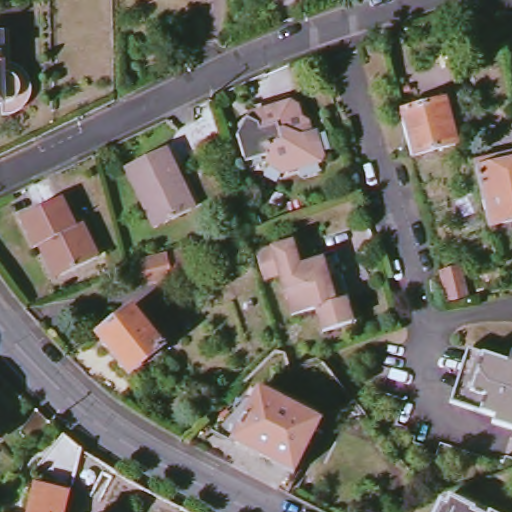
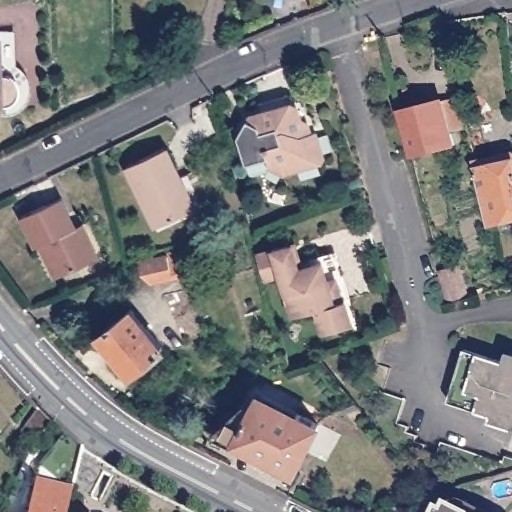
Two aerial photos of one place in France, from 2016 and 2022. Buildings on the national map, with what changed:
unchanged [(3,26),(5,61),(0,61),(0,26),(3,26)]
unchanged [(1,70),(3,70),(5,70),(7,71),(10,72),(12,74),(14,76),(15,78),(15,80),(16,82),(16,83),(16,86),(16,89),(15,91),(14,93),(12,95),(10,97),(8,98),(6,99),(5,100),(2,100),(0,100),(0,70),(1,70)]
unchanged [(269,162),(267,154),(245,160),(236,132),(246,115),(257,120),(260,115),(256,102),(285,93),(288,101),(297,107),(300,117),(306,119),(309,129),(314,127),(321,152),(318,158),(282,170),(269,162)]
unchanged [(399,115),(459,99),(466,130),(452,133),(455,146),(410,158),(399,115)]
unchanged [(125,167),(169,146),(184,176),(180,178),(195,207),(154,227),(125,167)]
unchanged [(512,153),(512,220),(489,225),(474,162),(512,153)]
unchanged [(48,264),(39,247),(35,249),(19,219),(58,200),(76,235),(82,232),(96,259),(63,277),(56,279),(48,264)]
unchanged [(256,251),(290,240),(298,265),(320,258),(335,299),(344,296),(351,321),(322,330),(315,306),(291,314),(279,272),(264,276),(256,251)]
unchanged [(142,276),(139,263),(184,252),(188,265),(184,266),(186,275),(151,284),(142,276)]
unchanged [(443,281),(441,271),(457,267),(460,276),(466,297),(449,302),(443,281)]
unchanged [(97,336),(130,309),(162,347),(129,375),(97,336)]
unchanged [(490,415),(448,402),(466,349),(512,364),(512,428),(489,420),(490,415)]
unchanged [(232,442),(255,398),(292,418),(295,411),(318,423),(292,473),(232,442)]
unchanged [(50,422),(33,445),(20,433),(36,410),(50,422)]
unchanged [(81,450),(107,467),(92,496),(70,484),(81,450)]
unchanged [(32,493),(68,500),(66,512),(27,512),(32,493)]
unchanged [(442,506),(448,509),(451,503),(468,512),(439,512),(442,506)]

